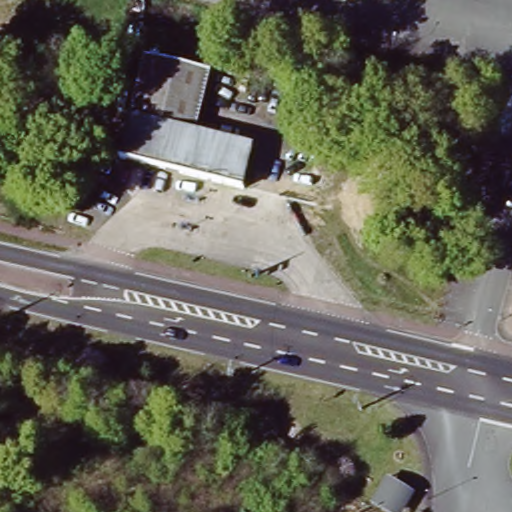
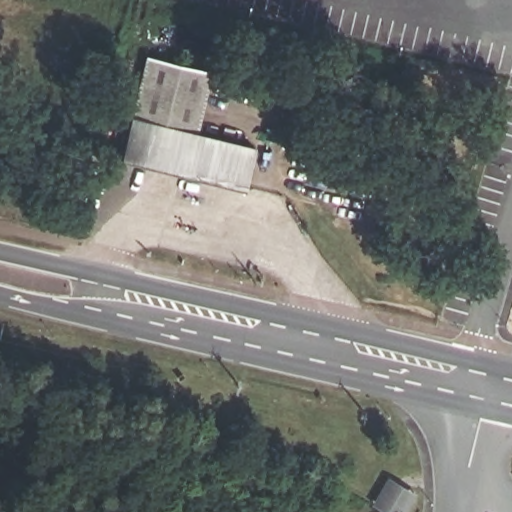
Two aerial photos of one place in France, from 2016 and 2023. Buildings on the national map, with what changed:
unchanged [(210,69),(198,120),(140,106),(154,55),(210,69)]
unchanged [(198,120),(261,135),(251,177),(130,148),(140,106),(198,120)]
unchanged [(391,478),(406,488),(395,505),(380,494),(391,478)]

